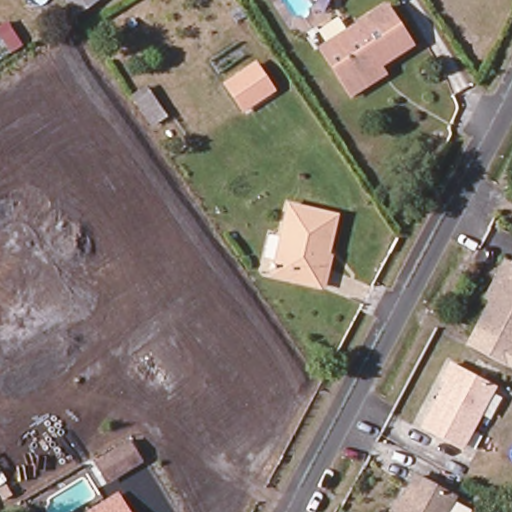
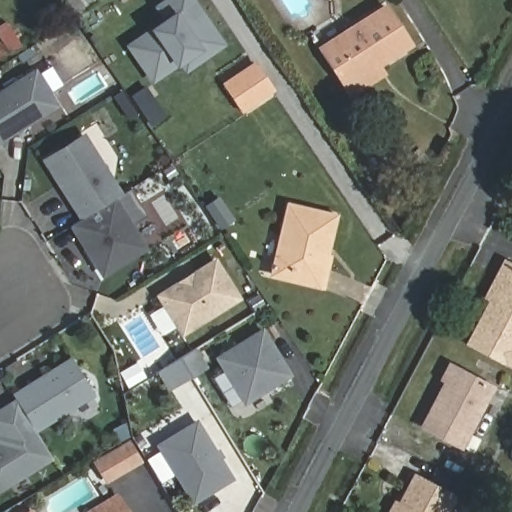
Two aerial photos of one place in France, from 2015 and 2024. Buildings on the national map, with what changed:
unchanged [(94,0),(74,14),(64,0),(94,0)]
new [(183,61),(152,81),(129,46),(166,21),(157,7),(167,0),(192,0),(223,45),(188,69),(183,61)]
unchanged [(410,46),(346,86),(321,47),(385,6),(410,46)]
unchanged [(254,63),(272,91),(242,111),(224,84),(254,63)]
new [(0,143),(0,90),(37,68),(60,106),(0,143)]
unchanged [(150,125),(131,96),(145,86),(165,115),(150,125)]
new [(149,248),(102,279),(71,227),(81,220),(42,159),(85,131),(123,193),(118,197),(149,248)]
unchanged [(335,217),(330,237),(326,236),(322,253),(326,254),(326,256),(328,257),(322,287),(271,275),(287,205),(335,217)]
new [(182,338),(156,295),(216,257),(242,299),(182,338)]
unchanged [(512,347),(476,328),(508,265),(512,266),(512,347)]
new [(244,406),(215,357),(263,327),(292,376),(244,406)]
new [(169,391),(157,372),(197,348),(208,368),(169,391)]
new [(36,433),(52,459),(0,492),(0,408),(15,399),(12,393),(72,357),(97,396),(36,433)]
unchanged [(492,388),(461,447),(422,427),(446,381),(442,379),(449,365),(492,388)]
new [(235,479),(192,504),(156,445),(197,419),(235,479)]
unchanged [(140,461),(106,482),(104,478),(96,484),(86,467),(129,442),(140,461)]
unchanged [(413,476),(453,496),(445,512),(395,512),(413,476)]
unchanged [(121,505),(125,512),(108,512),(121,505)]

